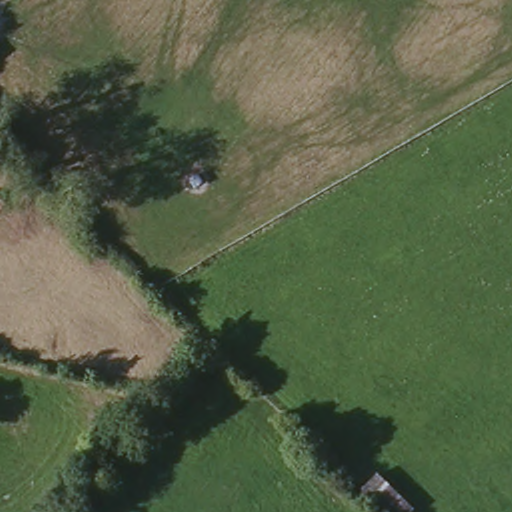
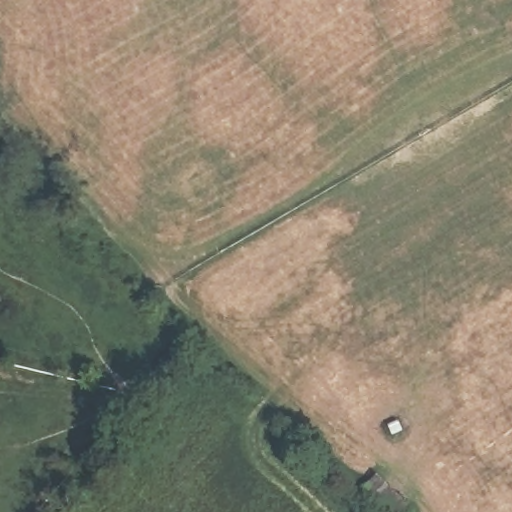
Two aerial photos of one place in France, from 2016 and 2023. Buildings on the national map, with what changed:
unchanged [(2,61),(0,63),(0,59),(2,61)]
unchanged [(37,133),(26,147),(0,123),(0,110),(4,106),(37,133)]
unchanged [(413,509),(409,512),(389,512),(363,485),(376,473),(413,509)]

